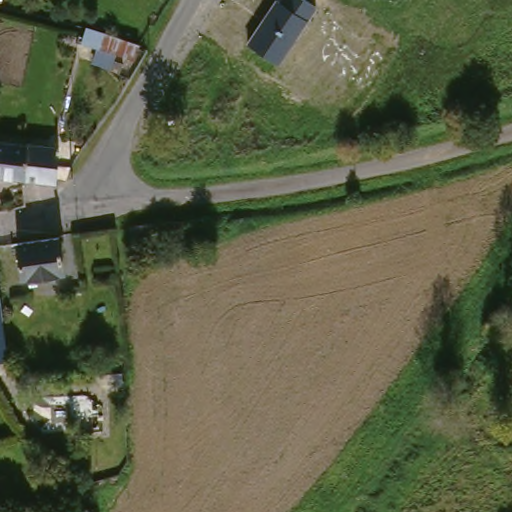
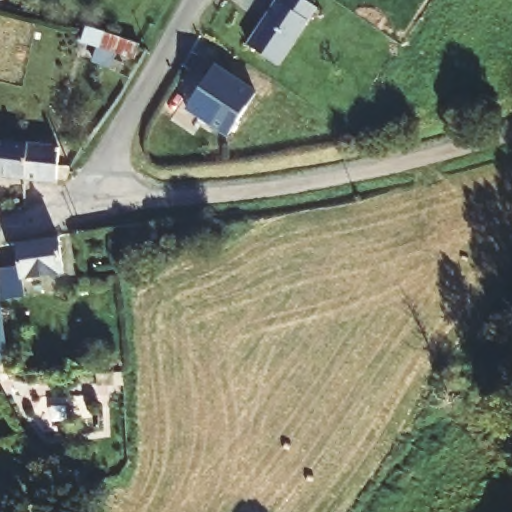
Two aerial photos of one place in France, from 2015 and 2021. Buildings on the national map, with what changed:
unchanged [(247,42),(275,0),(311,0),(318,5),(279,64),(247,42)]
unchanged [(82,41),(87,26),(91,28),(104,32),(140,44),(135,58),(82,41)]
demolished [(247,69),(212,125),(180,105),(215,49),(247,69)]
new [(257,92),(229,135),(186,109),(215,63),(257,92)]
unchanged [(35,179),(0,175),(0,119),(4,120),(2,140),(70,148),(66,182),(35,179)]
unchanged [(132,241),(130,225),(156,222),(157,237),(132,241)]
unchanged [(69,272),(27,278),(22,243),(64,237),(69,272)]
unchanged [(0,262),(2,274),(0,275),(0,262)]
unchanged [(12,354),(0,356),(0,275),(2,274),(12,354)]

